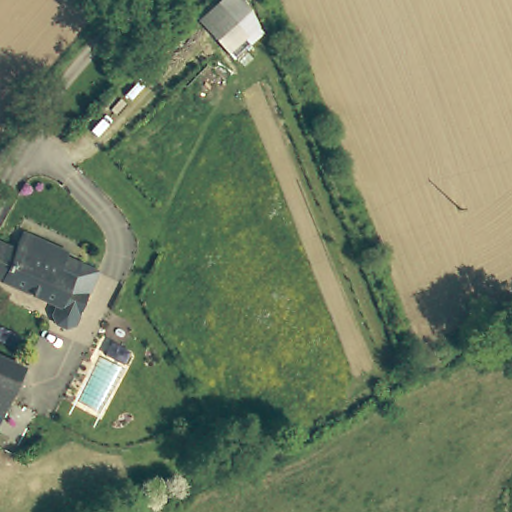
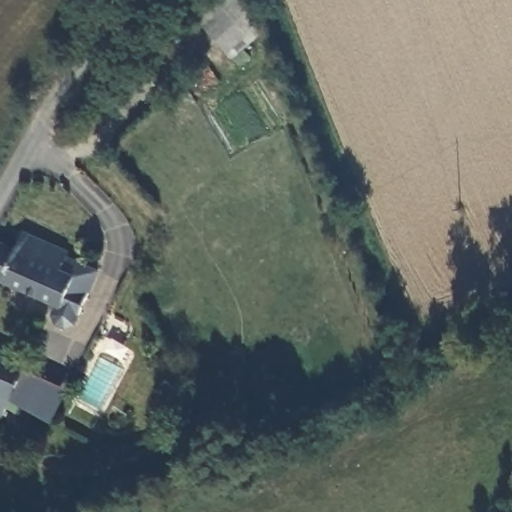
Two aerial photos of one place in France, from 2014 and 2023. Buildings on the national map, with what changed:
unchanged [(214,39),(197,20),(217,0),(236,0),(245,10),(214,39)]
unchanged [(63,257),(95,271),(92,276),(89,285),(74,317),(76,317),(72,326),(62,330),(52,325),(48,315),(52,306),(0,283),(0,245),(12,250),(16,239),(19,232),(50,246),(65,252),(63,257)]
unchanged [(0,417),(0,355),(24,365),(0,417)]
new [(68,390),(50,425),(8,400),(22,369),(68,390)]

